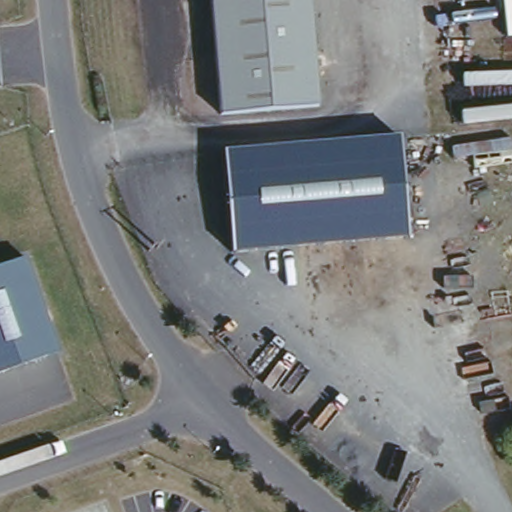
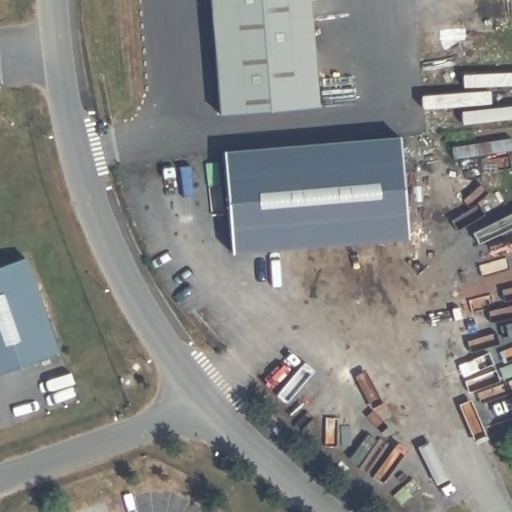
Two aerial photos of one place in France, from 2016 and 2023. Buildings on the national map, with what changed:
unchanged [(218,117),(207,0),(309,0),(318,106),(218,117)]
unchanged [(407,239),(234,257),(225,154),(400,137),(407,239)]
unchanged [(0,374),(0,270),(25,262),(58,352),(0,374)]

